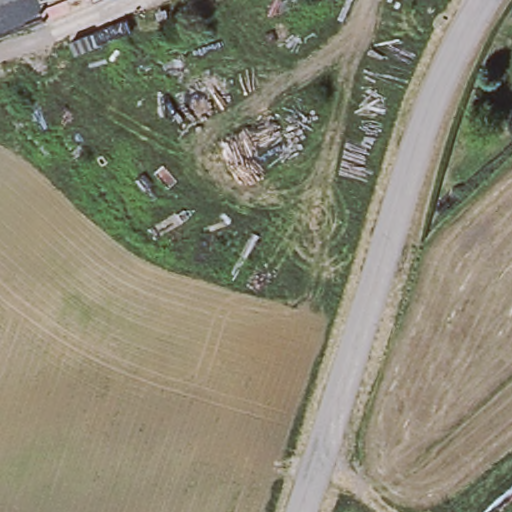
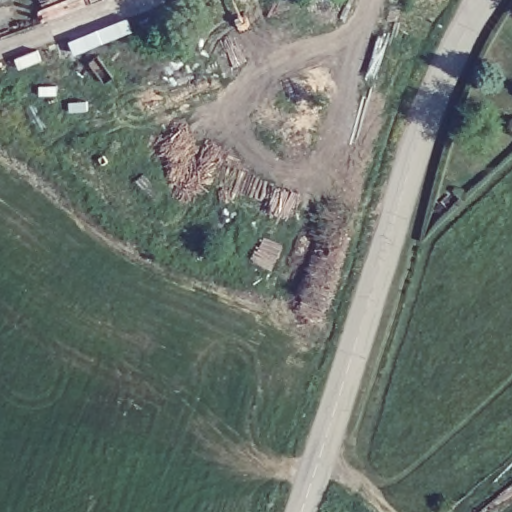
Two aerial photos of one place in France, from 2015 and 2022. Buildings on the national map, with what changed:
unchanged [(0,0),(4,0),(0,2),(0,0)]

